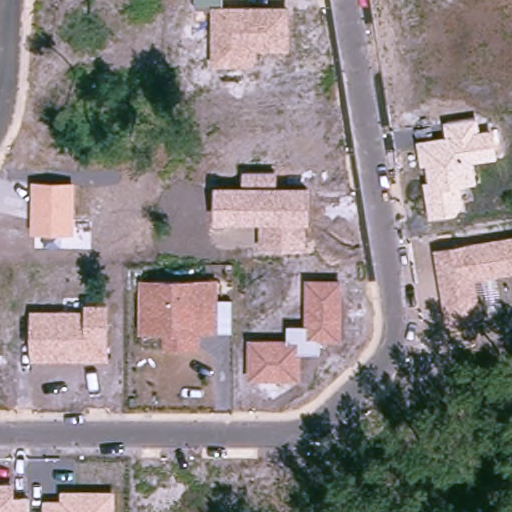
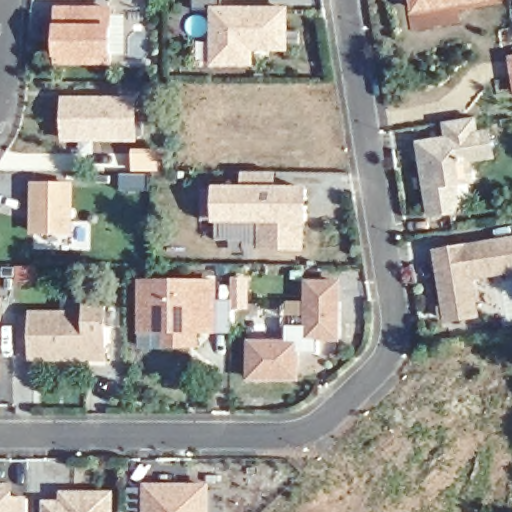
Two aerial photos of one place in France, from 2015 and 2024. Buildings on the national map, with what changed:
unchanged [(194,8),(194,0),(224,0),(223,9),(290,8),(290,53),(255,54),(255,67),(212,68),(212,9),(194,8)]
new [(412,16),(410,0),(506,0),(506,1),(412,16)]
new [(59,30),(59,10),(112,11),(112,63),(59,63),(59,41),(59,30)]
new [(512,55),(512,79),(509,56),(512,55)]
new [(139,97),(139,143),(62,143),(62,96),(139,97)]
unchanged [(477,119),(480,132),(492,131),(497,160),(475,163),(477,185),(461,188),(463,206),(456,218),(430,222),(423,182),(430,181),(427,165),(421,166),(416,141),(446,137),(443,123),(477,119)]
unchanged [(242,187),(244,172),(278,173),(278,187),(311,187),(311,224),(306,224),(305,251),(258,250),(259,224),(215,223),(216,186),(242,187)]
unchanged [(76,183),(76,235),(30,235),(32,183),(76,183)]
unchanged [(512,237),(512,276),(478,283),(483,320),(445,327),(433,251),(512,237)]
unchanged [(219,280),(219,335),(201,335),(201,351),(164,351),(164,337),(139,336),(139,281),(219,280)]
unchanged [(288,327),(305,327),(305,281),(342,281),(342,344),(322,343),(322,356),(302,355),(302,382),(247,382),(247,340),(287,340),(288,327)]
unchanged [(86,310),(86,302),(109,302),(110,362),(30,362),(31,311),(86,310)]
unchanged [(14,499),(29,501),(29,512),(0,512),(0,484),(15,484),(14,499)]
new [(149,487),(209,487),(208,512),(148,512),(149,487)]
unchanged [(43,501),(60,501),(60,490),(114,491),(114,512),(43,512),(43,501)]

